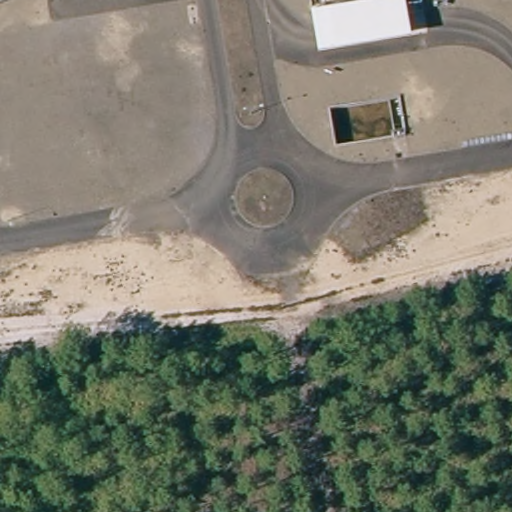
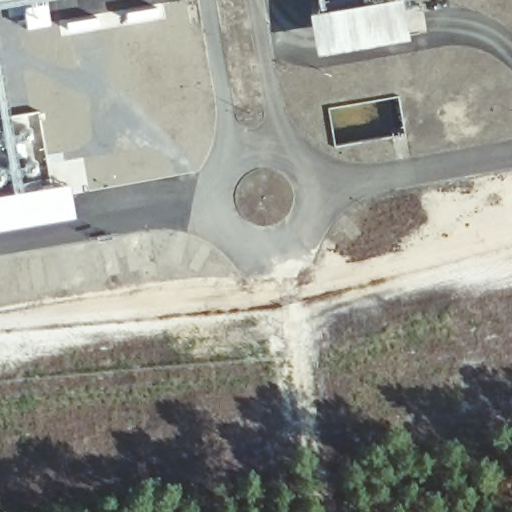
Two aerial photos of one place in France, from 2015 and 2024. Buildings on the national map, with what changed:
unchanged [(318,58),(311,14),(394,0),(405,0),(411,41),(318,58)]
new [(4,128),(17,189),(0,191),(0,129),(4,128)]
new [(17,189),(70,181),(76,218),(21,228),(0,230),(0,191),(17,189)]

